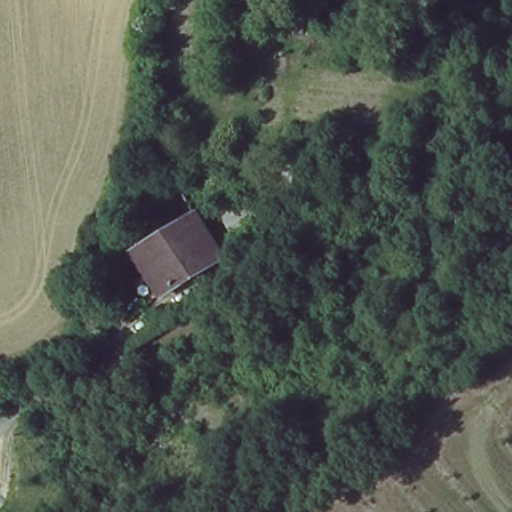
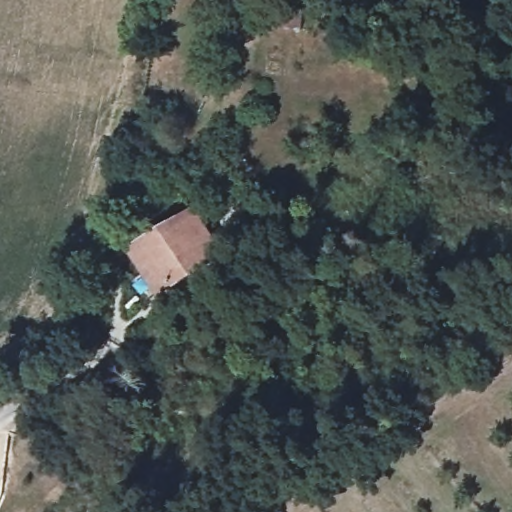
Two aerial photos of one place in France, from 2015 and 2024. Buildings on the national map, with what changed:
unchanged [(221,259),(159,297),(131,254),(194,215),(221,259)]

